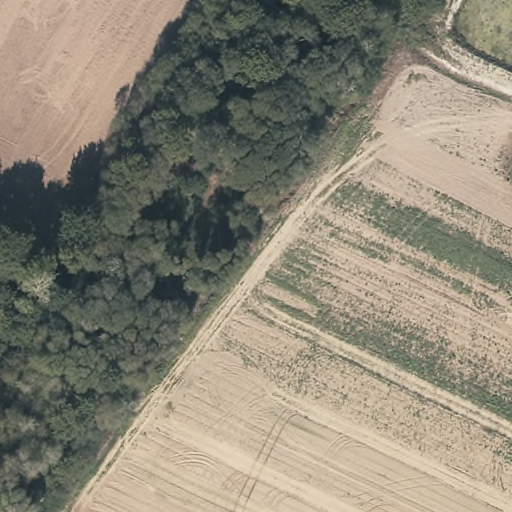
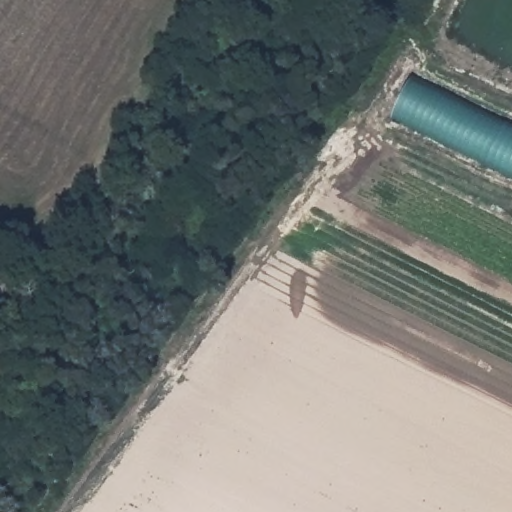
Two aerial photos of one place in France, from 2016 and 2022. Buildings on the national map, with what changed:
new [(512,131),(512,171),(394,112),(410,81),(512,131)]

